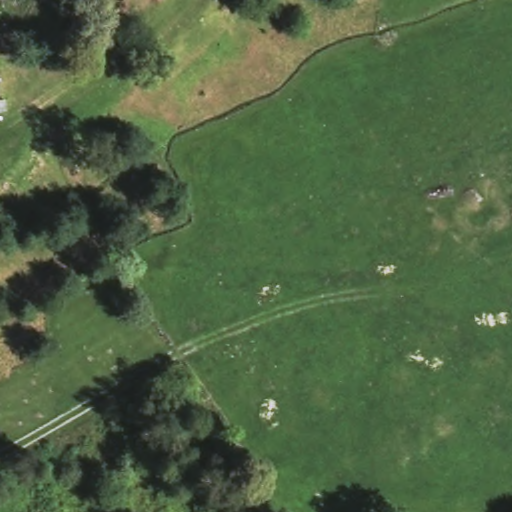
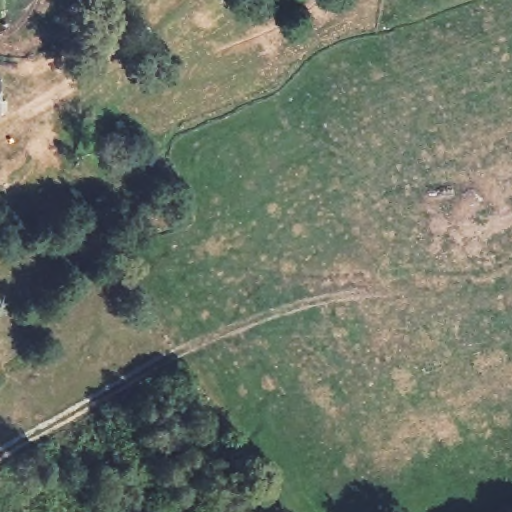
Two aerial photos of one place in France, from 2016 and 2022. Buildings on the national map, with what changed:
unchanged [(0,107),(0,95),(5,94),(6,106),(0,107)]

